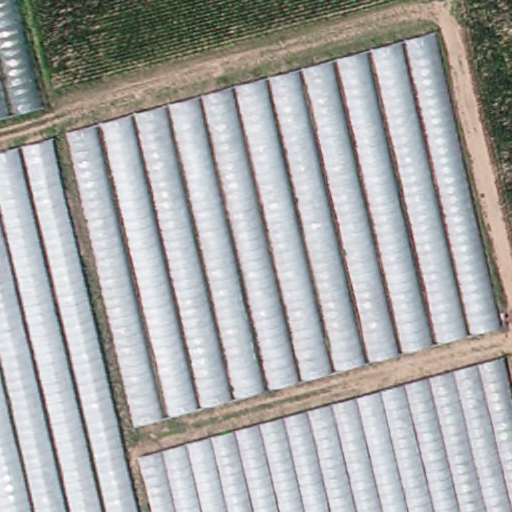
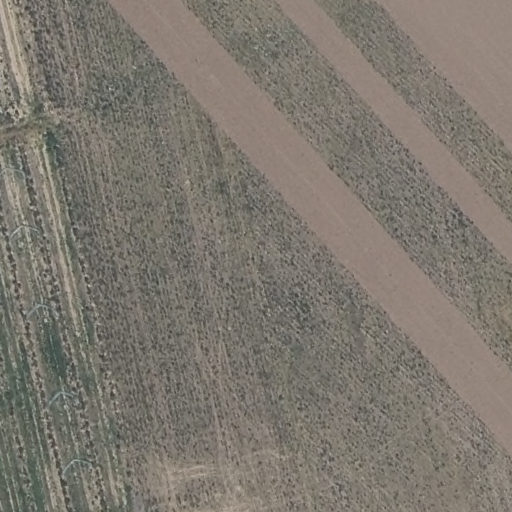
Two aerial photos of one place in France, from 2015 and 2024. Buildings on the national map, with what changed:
unchanged [(0,118),(0,0),(19,0),(44,106),(0,118)]
demolished [(139,425),(68,131),(437,30),(502,325),(139,425)]
unchanged [(49,135),(141,512),(0,512),(0,148),(49,135)]
demolished [(142,455),(504,357),(512,388),(512,512),(156,512),(142,455)]

